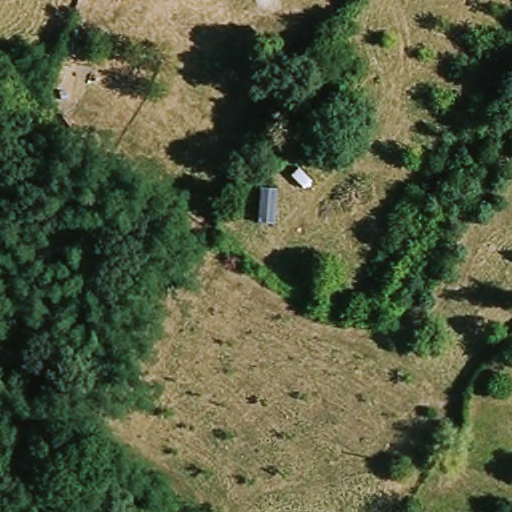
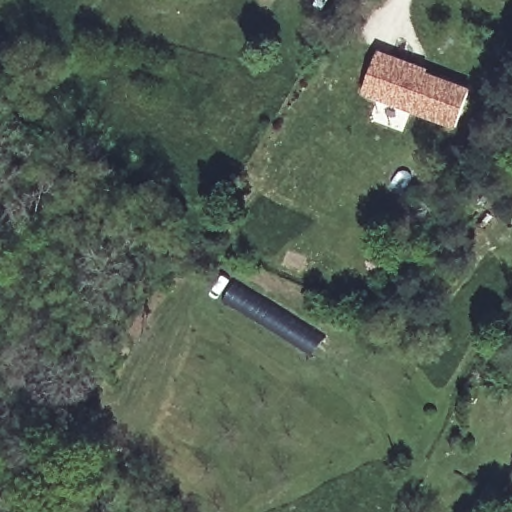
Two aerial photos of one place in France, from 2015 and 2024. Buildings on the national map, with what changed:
new [(426,71),(474,88),(458,127),(364,94),(380,50),(428,67),(426,71)]

